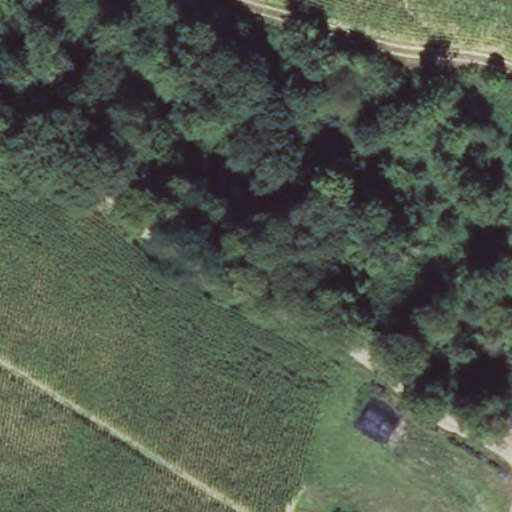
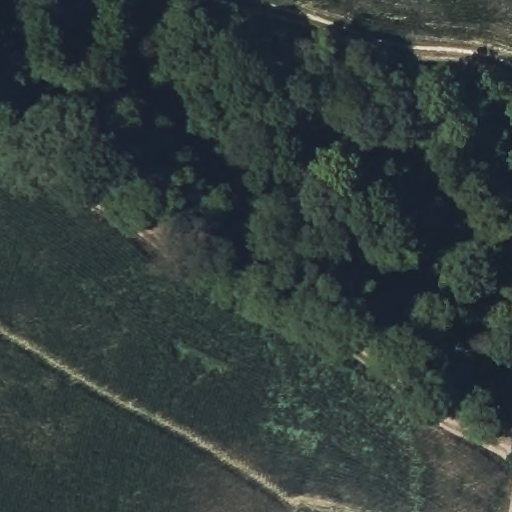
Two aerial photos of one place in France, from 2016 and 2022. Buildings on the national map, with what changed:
[]

